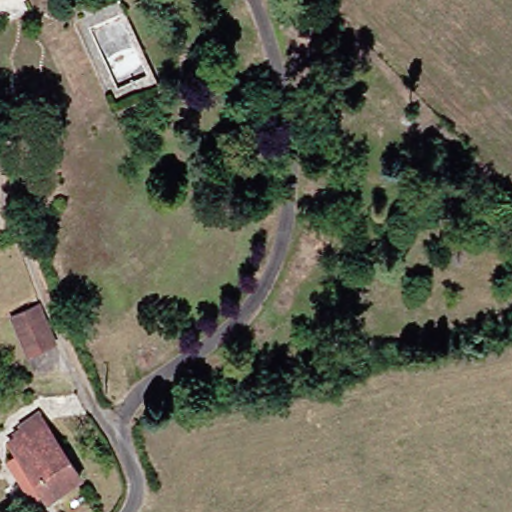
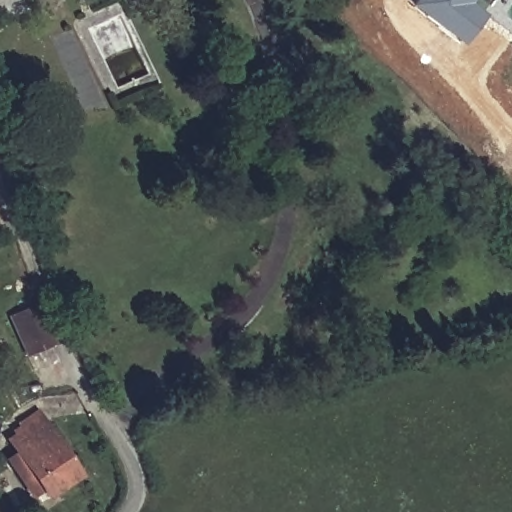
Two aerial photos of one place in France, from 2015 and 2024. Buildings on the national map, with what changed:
new [(415,0),(468,0),(465,4),(478,14),(457,41),(411,5),(415,0)]
unchanged [(55,342),(26,354),(11,317),(40,305),(55,342)]
unchanged [(7,459),(13,454),(3,439),(18,430),(13,423),(35,409),(43,422),(40,423),(75,476),(41,497),(36,490),(30,494),(7,459)]

